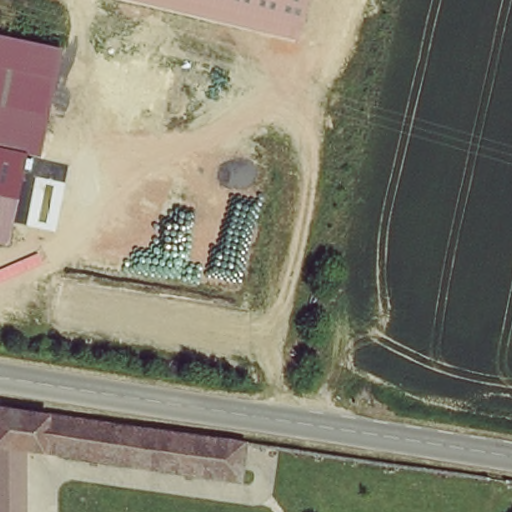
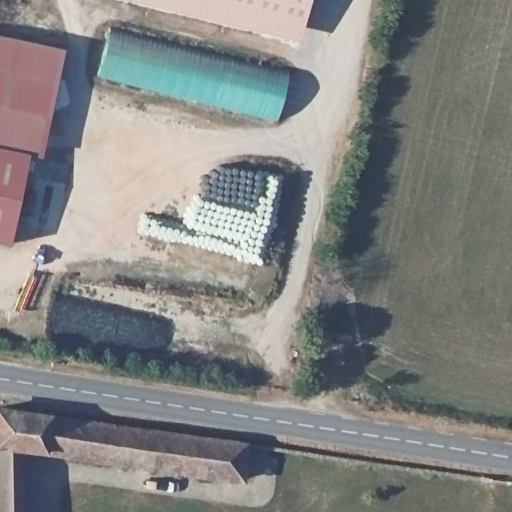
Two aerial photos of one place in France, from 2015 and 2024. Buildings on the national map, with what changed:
unchanged [(130,0),(307,0),(296,40),(130,0)]
new [(109,30),(288,72),(278,121),(97,75),(109,30)]
unchanged [(59,49),(43,131),(31,129),(25,155),(0,149),(0,36),(59,49)]
unchanged [(25,155),(6,245),(0,244),(0,149),(25,155)]
unchanged [(246,442),(241,483),(33,453),(31,512),(0,512),(0,409),(246,442)]

